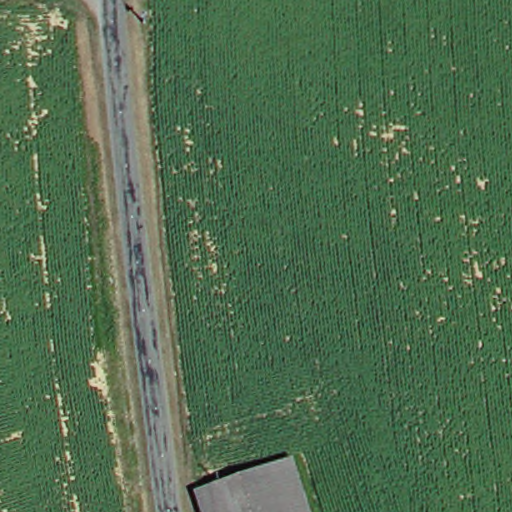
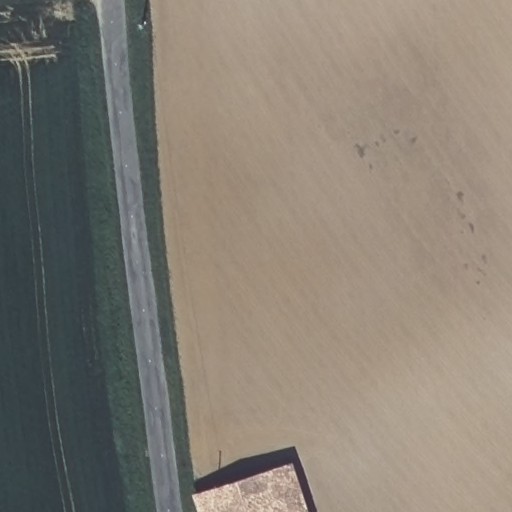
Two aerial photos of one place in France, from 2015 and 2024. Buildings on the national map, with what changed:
unchanged [(242,486),(266,476),(300,462),(314,512),(202,512),(200,504),(242,486)]

